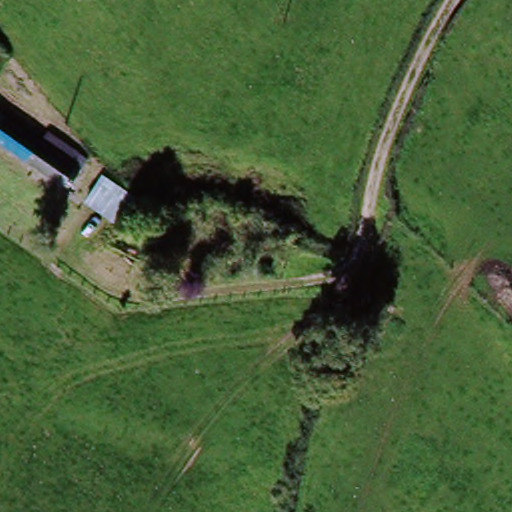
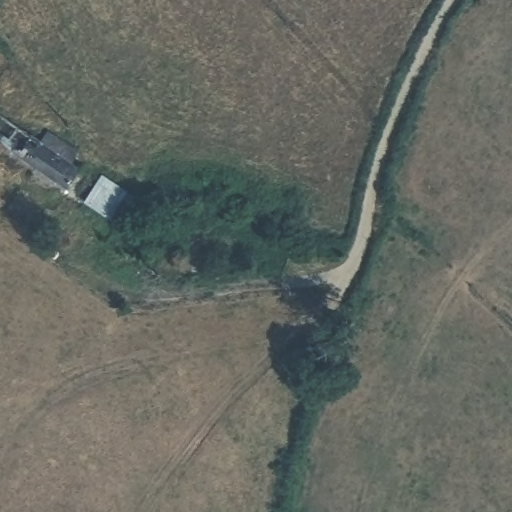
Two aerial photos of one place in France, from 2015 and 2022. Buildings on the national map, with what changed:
unchanged [(0,116),(55,152),(62,142),(84,158),(66,181),(52,173),(0,139),(0,116)]

